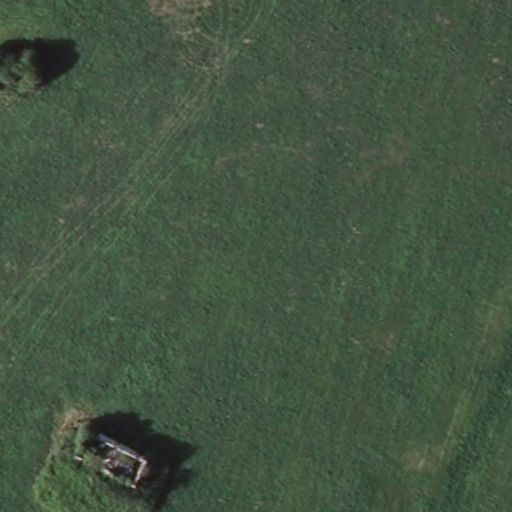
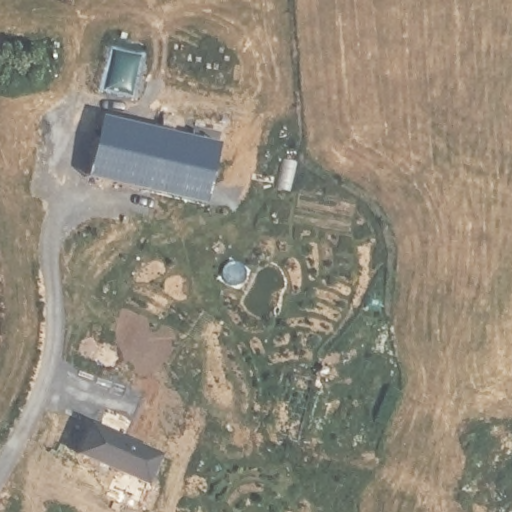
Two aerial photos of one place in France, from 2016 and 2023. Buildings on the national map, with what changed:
new [(40,82),(0,89),(0,61),(35,55),(40,82)]
new [(191,137),(193,129),(216,134),(200,204),(87,179),(101,116),(191,137)]
unchanged [(89,424),(154,455),(143,480),(76,450),(89,424)]

